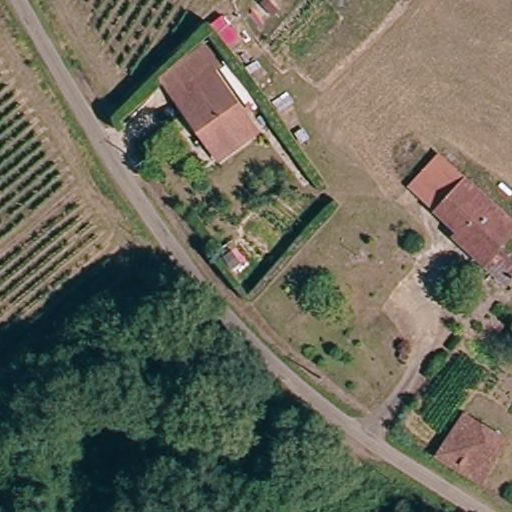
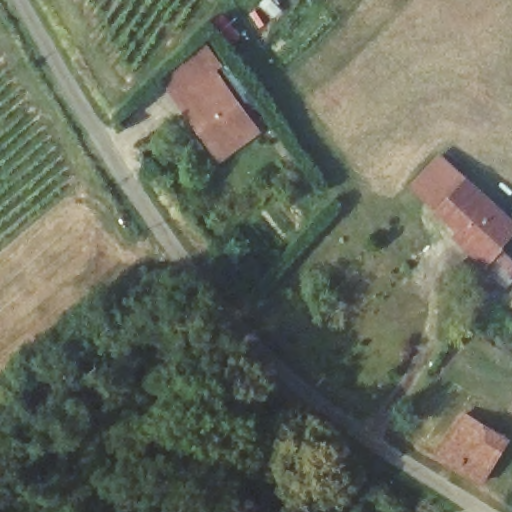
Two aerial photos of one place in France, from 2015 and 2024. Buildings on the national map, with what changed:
unchanged [(241,107),(202,135),(160,76),(200,48),(241,107)]
unchanged [(254,127),(209,159),(195,140),(202,135),(241,107),(254,127)]
unchanged [(512,222),(512,229),(487,260),(455,236),(460,228),(410,190),(434,161),(512,222)]
unchanged [(511,243),(512,244),(512,277),(506,272),(494,263),(511,243)]
unchanged [(441,452),(467,412),(509,441),(485,482),(441,452)]

